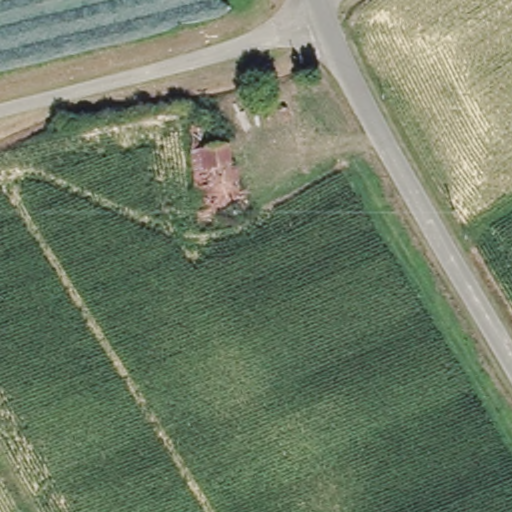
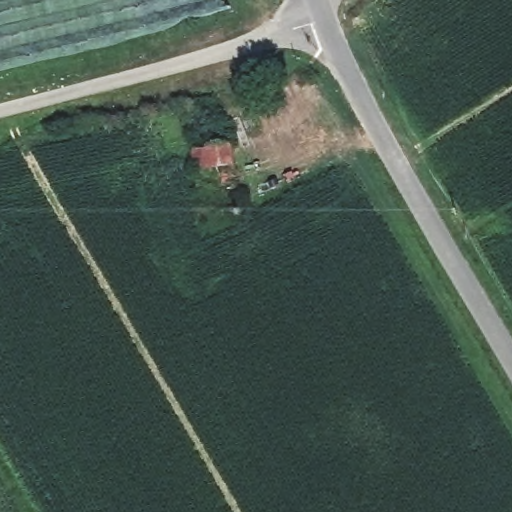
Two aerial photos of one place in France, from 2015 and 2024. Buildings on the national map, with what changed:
unchanged [(240,210),(205,215),(197,150),(191,116),(202,115),(204,127),(212,126),(215,148),(231,145),(240,210)]

